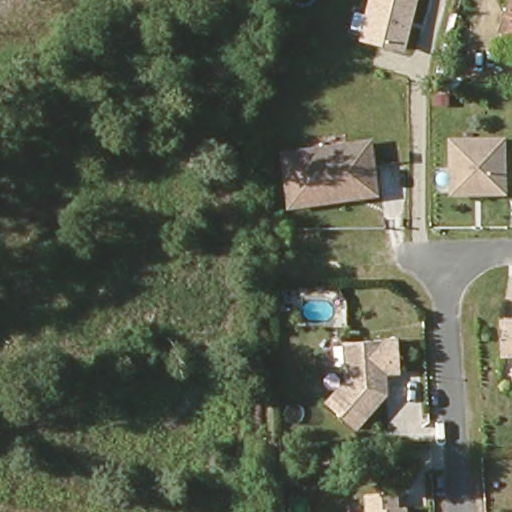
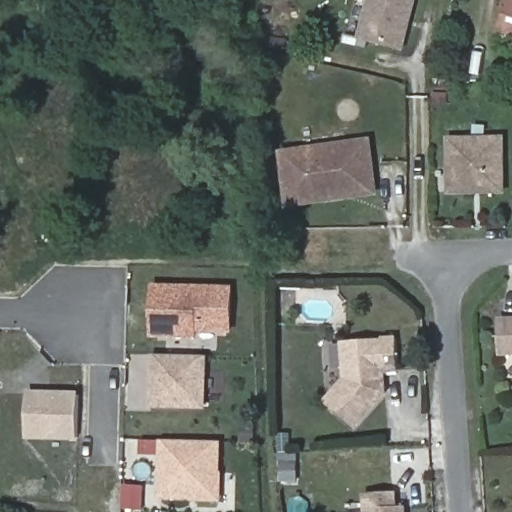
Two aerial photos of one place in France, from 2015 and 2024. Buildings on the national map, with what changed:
unchanged [(357,40),(367,0),(418,0),(405,52),(357,40)]
unchanged [(504,10),(507,0),(512,0),(512,13),(504,10)]
unchanged [(493,35),(504,14),(512,16),(512,41),(493,35)]
unchanged [(505,137),(506,195),(448,196),(447,137),(505,137)]
unchanged [(370,194),(340,197),(336,192),(323,200),(286,204),(280,155),(280,154),(302,151),(342,146),(363,144),(370,194)]
new [(230,331),(195,331),(195,337),(154,336),(155,288),(231,290),(230,331)]
unchanged [(498,353),(497,319),(512,319),(512,353),(498,353)]
unchanged [(396,373),(381,375),(383,394),(352,430),(322,405),(341,382),(338,346),(393,341),(396,373)]
new [(152,358),(202,358),(201,408),(151,407),(152,358)]
new [(27,440),(27,392),(77,393),(77,441),(27,440)]
new [(219,500),(162,497),(164,441),(219,442),(219,500)]
unchanged [(395,506),(403,507),(404,512),(365,512),(363,493),(395,492),(395,506)]

